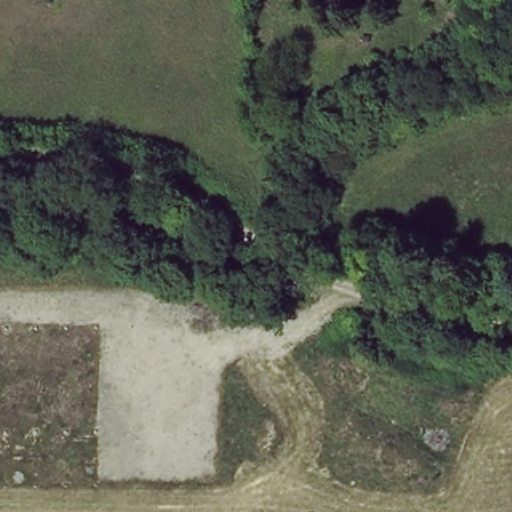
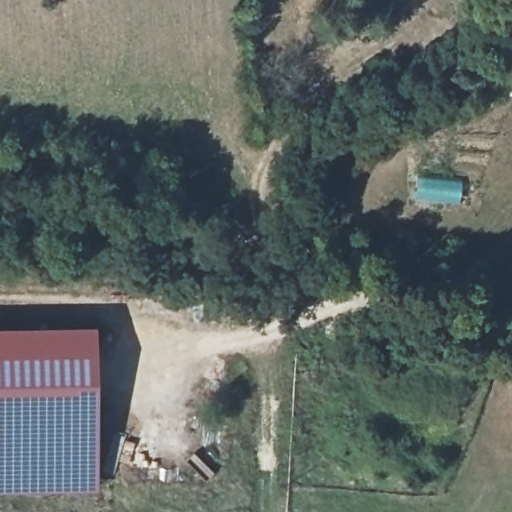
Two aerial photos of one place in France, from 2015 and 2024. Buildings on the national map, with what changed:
new [(105,499),(0,499),(0,328),(105,326),(105,499)]

